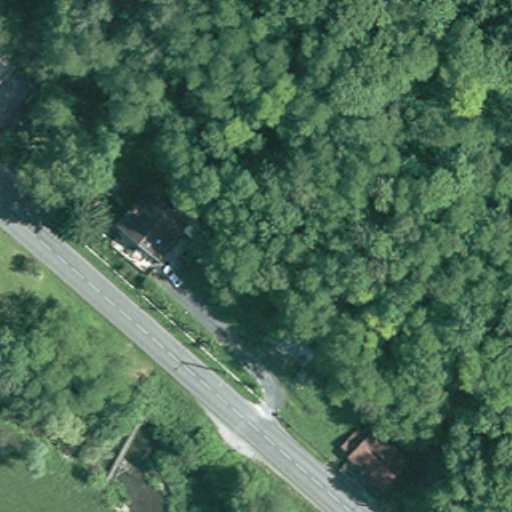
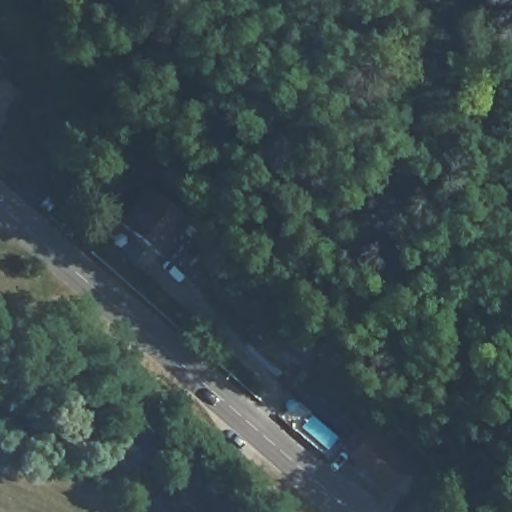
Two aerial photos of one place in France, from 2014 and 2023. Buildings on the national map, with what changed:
unchanged [(0,72),(0,47),(12,60),(0,72)]
unchanged [(193,244),(177,230),(155,252),(117,219),(145,189),(183,224),(189,219),(203,231),(193,244)]
unchanged [(415,476),(407,468),(388,487),(375,473),(370,477),(363,470),(366,467),(345,448),(363,428),(370,435),(373,431),(411,463),(420,471),(415,476)]

